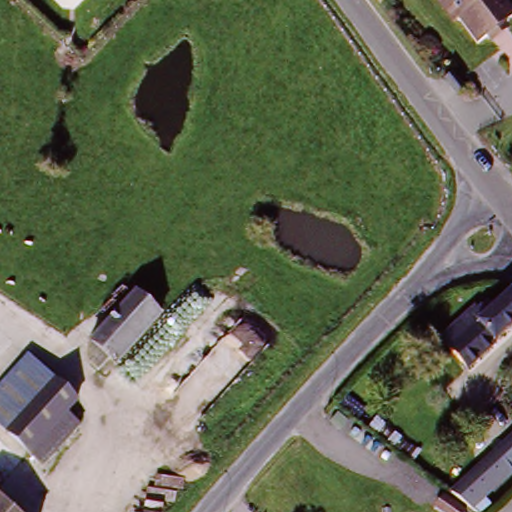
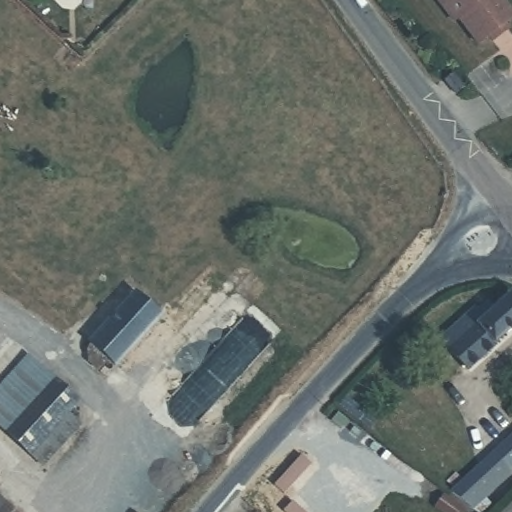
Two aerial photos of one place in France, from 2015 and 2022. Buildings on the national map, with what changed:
unchanged [(443,3),(441,0),(447,0),(443,3)]
unchanged [(500,38),(487,48),(450,0),(508,0),(512,5),(512,38),(505,43),(500,38)]
unchanged [(118,367),(88,346),(133,291),(165,313),(118,367)]
unchanged [(512,335),(470,374),(452,355),(441,343),(471,312),(475,315),(485,307),(492,316),(510,300),(512,303),(512,335)]
unchanged [(82,426),(45,465),(0,424),(0,388),(29,356),(78,401),(68,413),(82,426)]
unchanged [(467,512),(448,492),(512,437),(512,483),(482,512),(467,512)]
unchanged [(40,512),(0,512),(0,481),(2,479),(40,512)]

